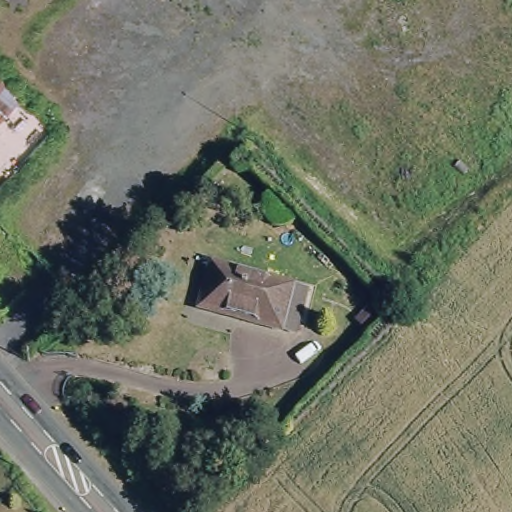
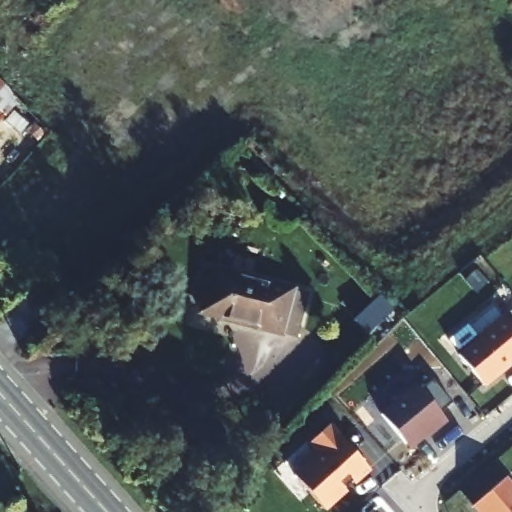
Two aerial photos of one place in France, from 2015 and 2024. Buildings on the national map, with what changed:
unchanged [(28,117),(3,145),(0,143),(0,88),(16,106),(28,117)]
unchanged [(216,264),(310,288),(298,328),(205,303),(216,264)]
new [(512,325),(512,364),(485,386),(457,351),(503,314),(512,325)]
new [(433,380),(451,402),(440,411),(447,420),(411,450),(379,412),(415,381),(422,390),(433,380)]
new [(355,485),(349,479),(343,485),(349,491),(326,511),(292,474),(315,453),(307,445),(330,424),(372,470),(355,485)]
new [(477,512),(470,504),(502,476),(512,488),(512,512),(477,512)]

